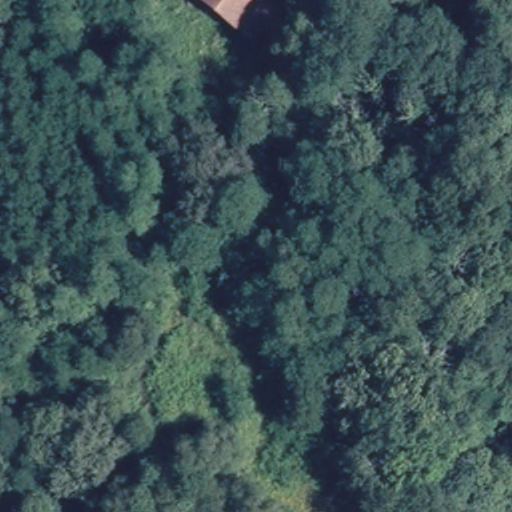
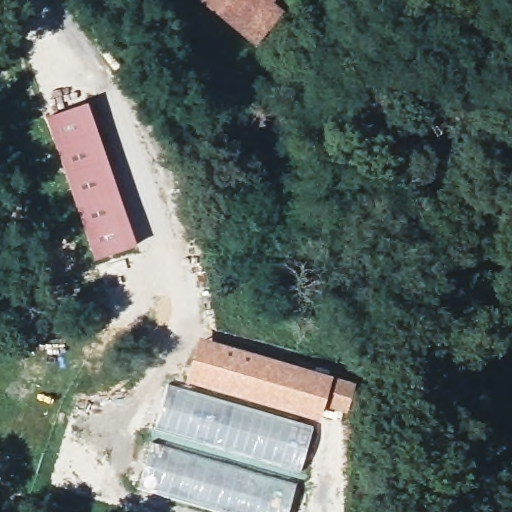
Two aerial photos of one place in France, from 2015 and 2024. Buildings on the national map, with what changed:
unchanged [(254,53),(188,0),(257,0),(279,19),(254,53)]
new [(86,102),(135,245),(93,260),(44,117),(86,102)]
new [(199,350),(215,354),(348,394),(341,418),(317,410),(313,425),(188,388),(195,364),(199,350)]
new [(154,429),(168,383),(188,388),(313,425),(299,471),(154,429)]
new [(150,442),(295,484),(287,512),(217,512),(137,488),(150,442)]

